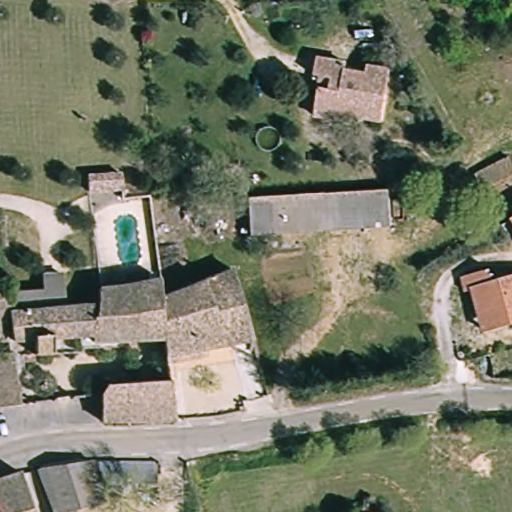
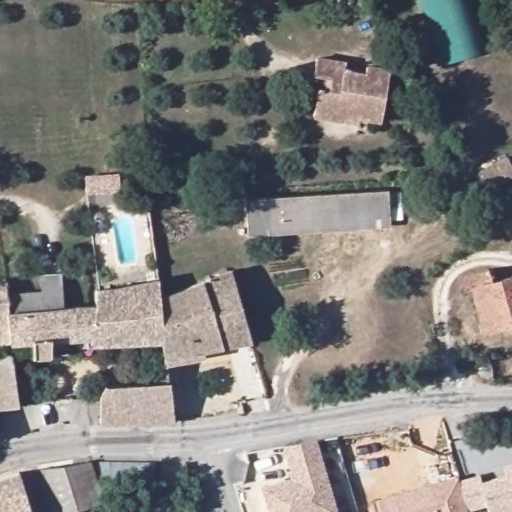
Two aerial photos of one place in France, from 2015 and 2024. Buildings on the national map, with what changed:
new [(483,53),(438,65),(421,0),(470,0),(483,53)]
unchanged [(313,113),(318,88),(310,86),(315,66),(341,72),(340,81),(358,84),(359,77),(380,81),(370,125),(348,120),(332,117),(313,113)]
unchanged [(512,178),(480,198),(468,179),(502,158),(512,178)]
unchanged [(386,193),(387,226),(245,239),(242,204),(386,193)]
unchanged [(510,222),(512,222),(512,228),(510,222)]
unchanged [(224,266),(247,334),(224,339),(162,352),(160,340),(153,292),(224,266)]
unchanged [(478,313),(477,295),(461,296),(459,277),(496,274),(498,285),(512,284),(512,324),(508,324),(480,326),(478,313)]
unchanged [(90,337),(90,330),(48,333),(48,345),(28,346),(27,352),(4,353),(2,348),(0,337),(2,292),(21,291),(22,309),(90,304),(91,287),(115,285),(152,277),(153,292),(160,340),(90,337)]
unchanged [(2,292),(0,337),(0,284),(2,292)]
unchanged [(0,355),(2,354),(4,359),(15,408),(0,410),(0,355)]
unchanged [(170,422),(93,423),(95,396),(95,389),(102,383),(152,383),(152,372),(163,372),(170,422)]
new [(285,445),(317,440),(338,512),(271,512),(264,488),(295,479),(292,473),(285,445)]
new [(505,475),(503,466),(510,463),(512,463),(512,512),(491,512),(488,504),(469,510),(460,481),(480,475),(482,482),(505,475)]
unchanged [(68,512),(47,512),(33,474),(52,470),(85,464),(91,483),(97,502),(68,512)]
unchanged [(85,464),(147,465),(147,482),(91,483),(85,464)]
unchanged [(30,512),(0,512),(0,480),(17,473),(30,512)]
new [(470,512),(379,512),(375,500),(458,475),(460,481),(469,510),(470,512)]

